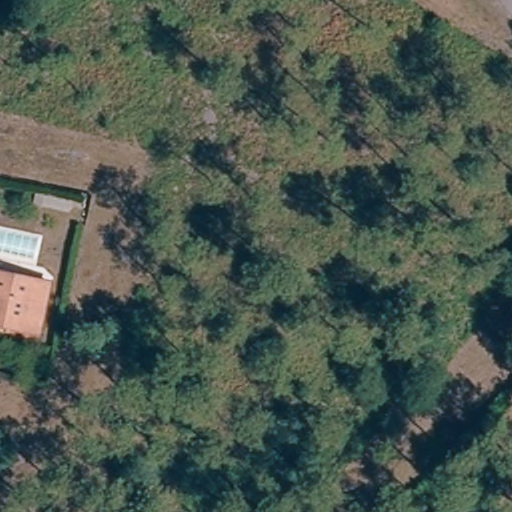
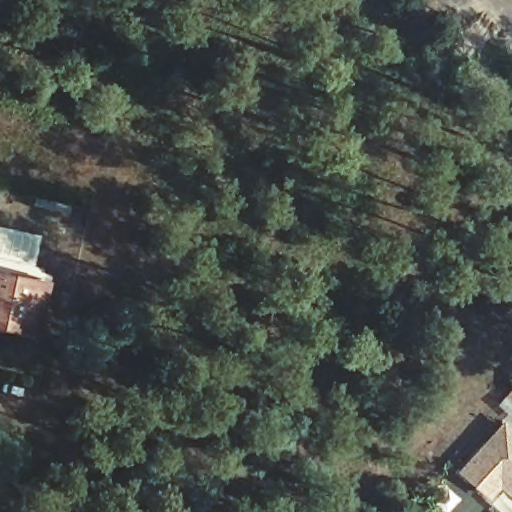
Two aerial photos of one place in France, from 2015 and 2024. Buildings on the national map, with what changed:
unchanged [(38,330),(0,322),(0,281),(46,291),(38,330)]
unchanged [(508,397),(512,392),(512,400),(508,397)]
new [(512,427),(512,498),(500,488),(489,499),(457,470),(504,419),(512,427)]

